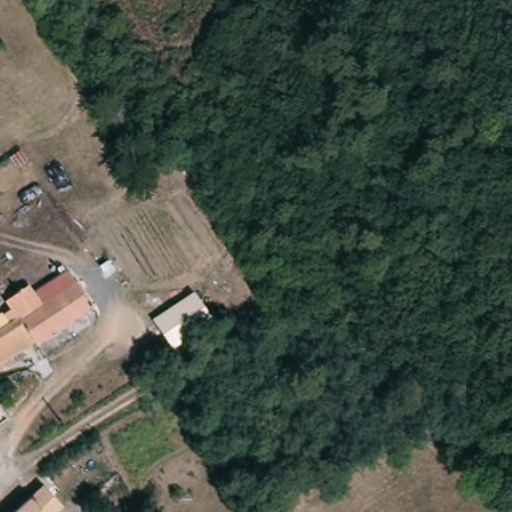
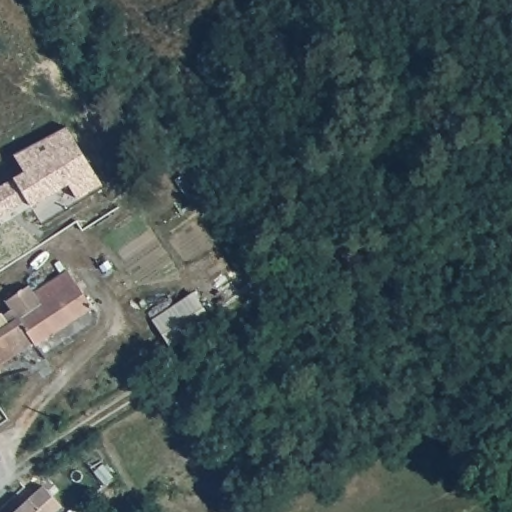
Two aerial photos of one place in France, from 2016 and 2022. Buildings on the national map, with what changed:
new [(15,177),(24,171),(15,155),(66,124),(102,184),(77,197),(69,183),(58,201),(31,205),(15,177)]
unchanged [(0,367),(0,319),(12,311),(9,299),(34,283),(36,291),(71,268),(92,308),(0,367)]
unchanged [(174,345),(156,322),(195,292),(205,305),(214,316),(174,345)]
unchanged [(60,505),(52,512),(11,512),(40,484),(60,505)]

